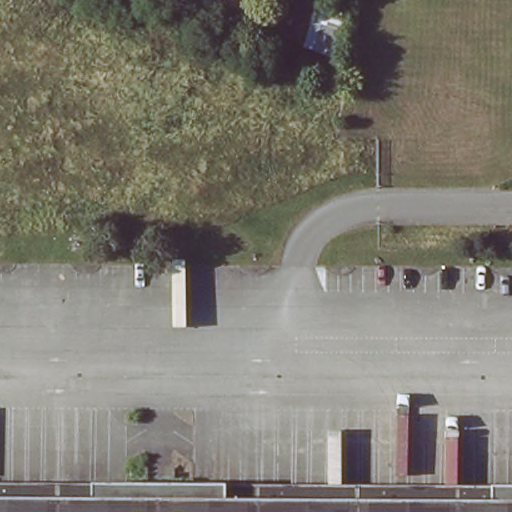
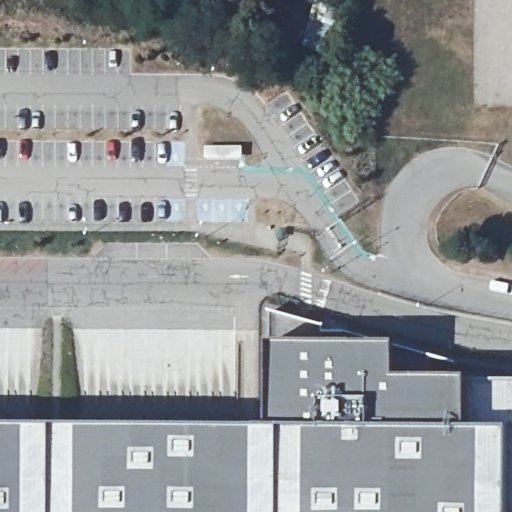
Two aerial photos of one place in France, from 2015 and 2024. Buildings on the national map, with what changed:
unchanged [(213,6),(243,16),(238,35),(208,26),(213,6)]
new [(271,347),(270,312),(326,328),(326,335),(345,335),(430,359),(429,382),(465,381),(512,382),(512,512),(0,512),(0,432),(270,433),(271,347)]
demolished [(0,497),(512,500),(512,512),(0,512),(0,497)]

